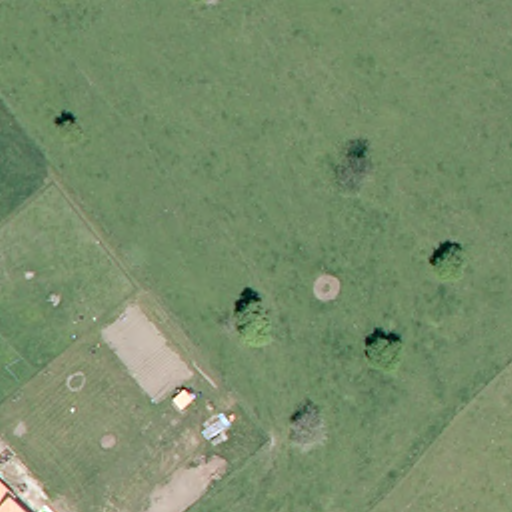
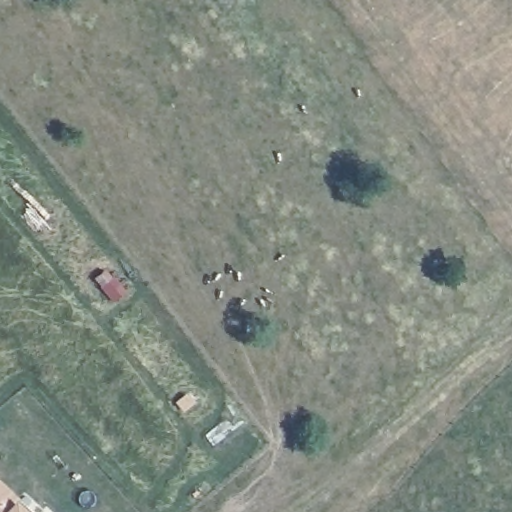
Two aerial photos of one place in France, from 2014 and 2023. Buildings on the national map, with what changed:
unchanged [(0,486),(24,512),(0,512),(0,486)]

